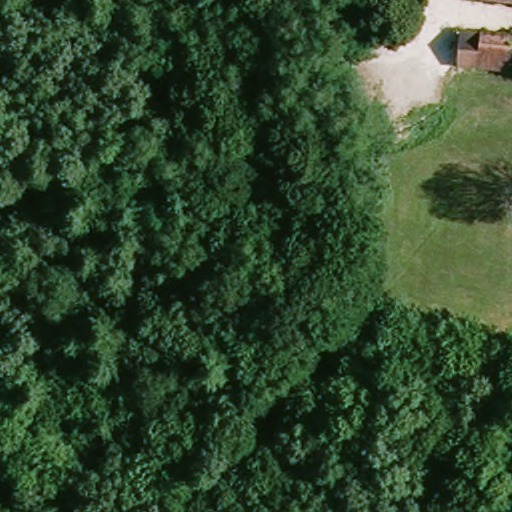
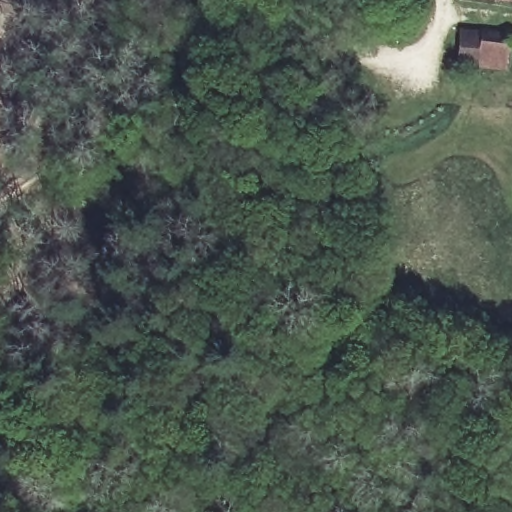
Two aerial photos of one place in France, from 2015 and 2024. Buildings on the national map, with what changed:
unchanged [(473,64),(475,53),(454,51),(457,29),(512,37),(512,51),(510,68),(473,64)]

